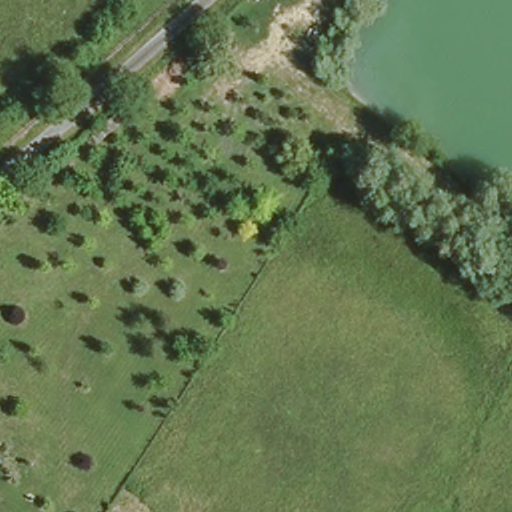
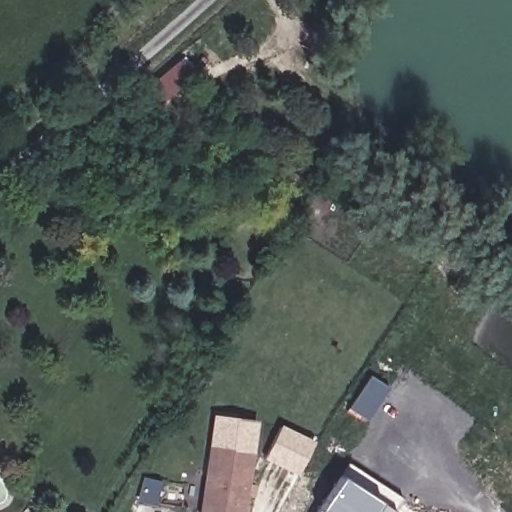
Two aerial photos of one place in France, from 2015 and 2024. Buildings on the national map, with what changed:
new [(366,419),(350,408),(371,375),(389,387),(366,419)]
new [(313,440),(296,475),(265,459),(282,425),(313,440)]
new [(242,512),(200,512),(208,442),(249,447),(242,512)]
new [(348,462),(357,467),(348,481),(394,511),(393,512),(316,512),(348,462)]

